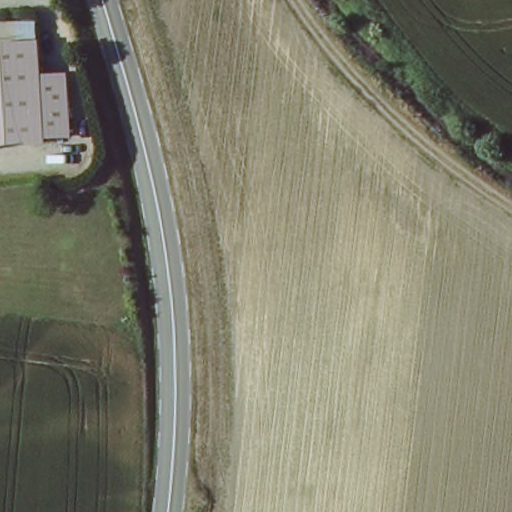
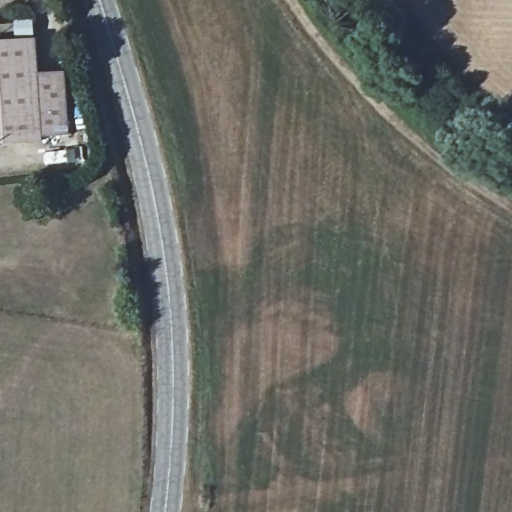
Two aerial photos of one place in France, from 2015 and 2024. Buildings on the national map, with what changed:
unchanged [(68,70),(71,132),(0,140),(0,44),(36,41),(37,71),(68,70)]

